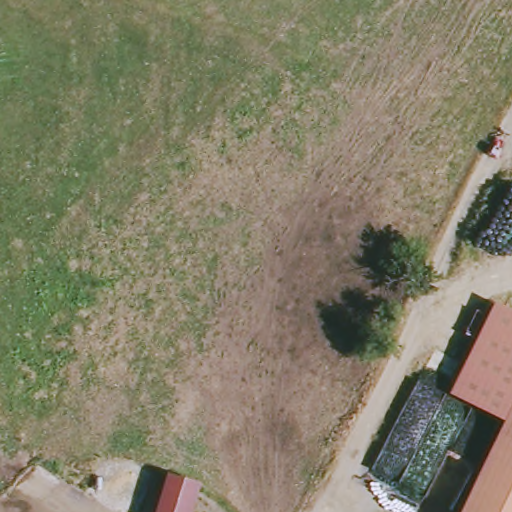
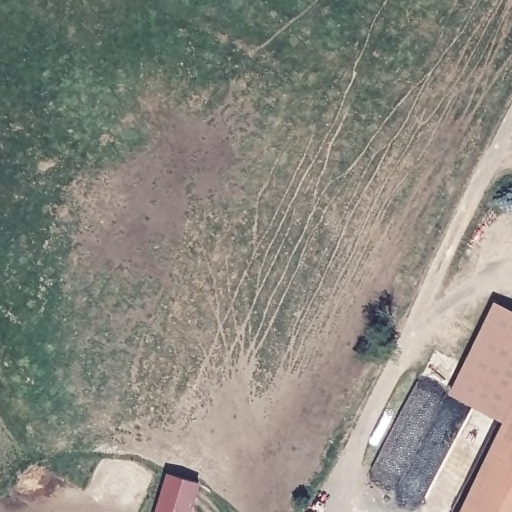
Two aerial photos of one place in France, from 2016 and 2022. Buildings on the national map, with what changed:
unchanged [(512,512),(459,512),(502,429),(451,395),(494,301),(512,310),(512,512)]
unchanged [(202,482),(190,512),(156,512),(173,472),(202,482)]

